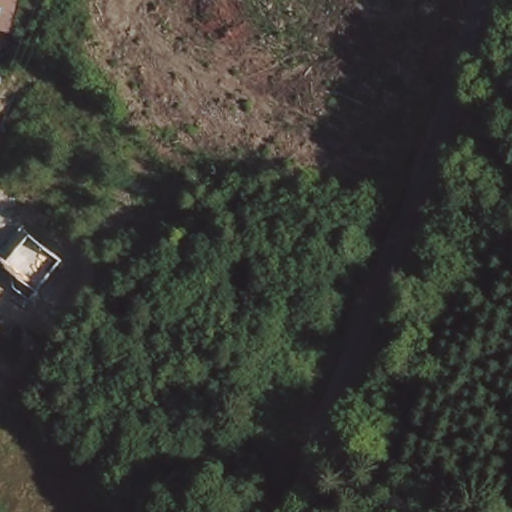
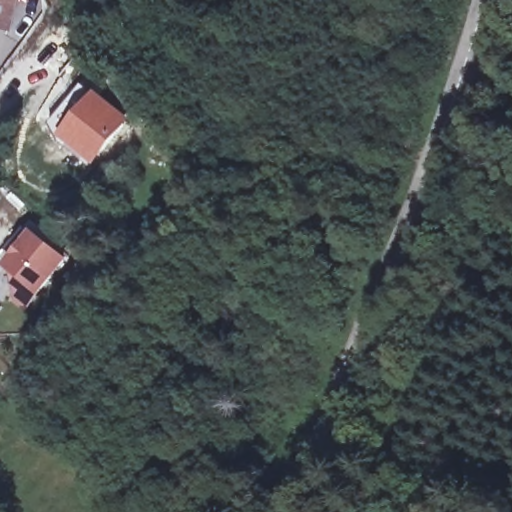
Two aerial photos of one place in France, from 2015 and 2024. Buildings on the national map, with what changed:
unchanged [(8,29),(0,27),(0,0),(14,0),(8,29)]
new [(93,90),(130,119),(92,165),(56,135),(93,90)]
unchanged [(37,293),(6,265),(32,234),(62,260),(37,293)]

